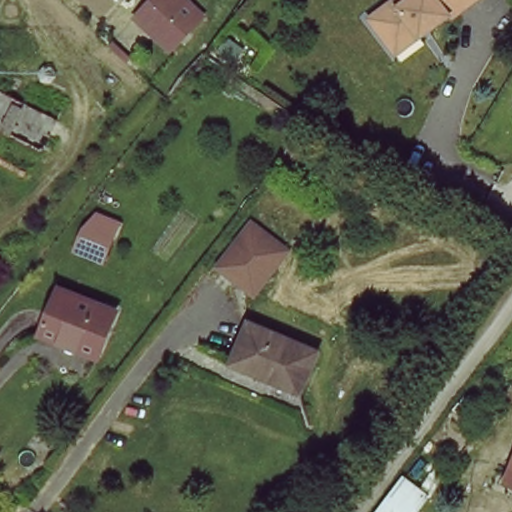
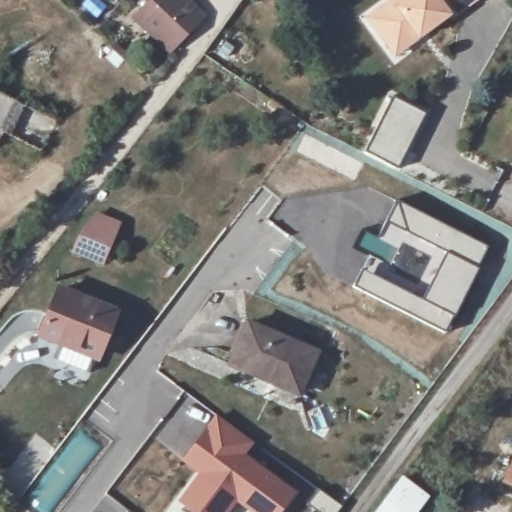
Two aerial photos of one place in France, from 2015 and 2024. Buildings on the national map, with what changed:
unchanged [(150,0),(185,0),(201,17),(175,51),(132,16),(150,0)]
unchanged [(366,20),(391,2),(394,0),(478,0),(449,21),(447,18),(425,34),(393,57),(389,51),(366,20)]
unchanged [(55,120),(39,151),(1,133),(0,134),(0,94),(55,120)]
new [(392,96),(425,113),(398,168),(364,150),(392,96)]
new [(361,269),(369,255),(352,248),(362,229),(379,238),(386,222),(395,201),(487,247),(445,332),(354,286),(361,269)]
unchanged [(105,259),(74,245),(83,221),(117,234),(105,259)]
demolished [(282,252),(265,274),(251,264),(235,284),(212,267),(246,224),(282,252)]
unchanged [(92,354),(37,332),(56,287),(110,310),(92,354)]
unchanged [(231,356),(247,323),(318,355),(298,397),(260,381),(226,366),(231,356)]
new [(216,414),(254,444),(246,454),(295,492),(280,512),(251,512),(237,502),(230,512),(193,512),(178,501),(198,474),(181,461),(216,414)]
unchanged [(512,465),(512,479),(507,477),(512,465)]
unchanged [(400,474),(430,499),(420,512),(375,512),(400,474)]

